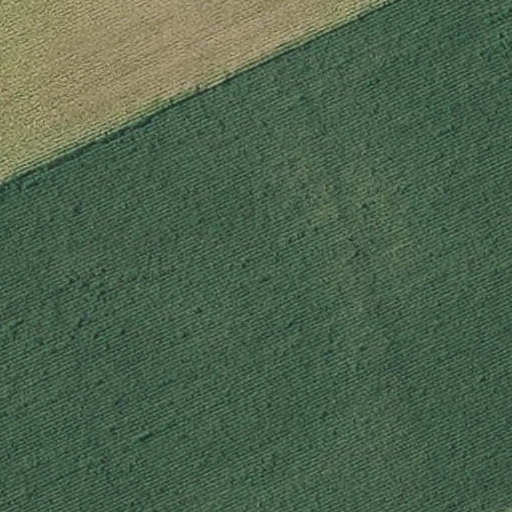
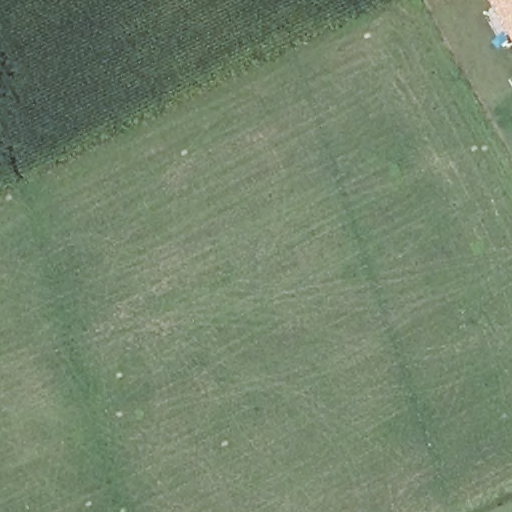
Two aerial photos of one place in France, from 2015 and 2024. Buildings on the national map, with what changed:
new [(512,0),(512,37),(490,0),(512,0)]

